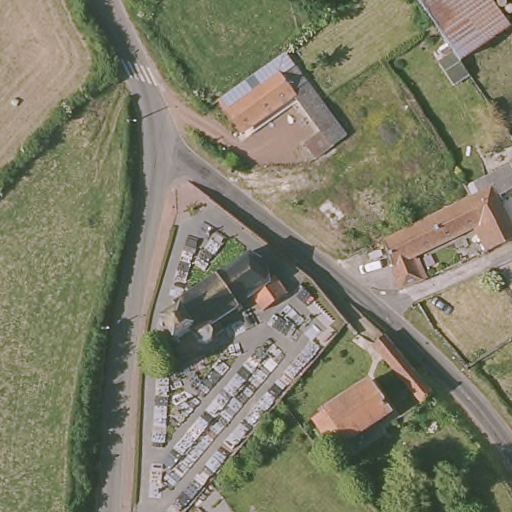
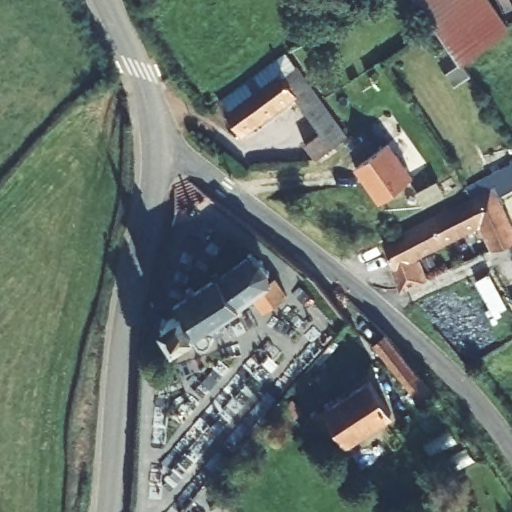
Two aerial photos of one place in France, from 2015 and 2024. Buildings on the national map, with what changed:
unchanged [(443,40),(416,0),(486,0),(509,33),(461,66),(443,40)]
unchanged [(345,134),(316,154),(306,140),(319,131),(288,90),(269,103),(238,132),(217,108),(283,51),(345,134)]
new [(390,142),(414,175),(378,203),(355,168),(390,142)]
unchanged [(494,183),(512,174),(512,188),(501,193),(494,183)]
unchanged [(472,206),(466,196),(491,184),(512,223),(512,249),(501,253),(477,212),(472,206)]
unchanged [(397,277),(385,252),(477,212),(501,253),(494,257),(482,239),(421,266),(430,286),(414,293),(406,296),(397,277)]
unchanged [(181,300),(176,295),(181,292),(186,297),(204,281),(200,276),(206,270),(210,276),(229,260),(227,257),(231,253),(234,257),(251,257),(276,291),(276,292),(254,311),(247,303),(242,297),(232,305),(235,309),(229,313),(226,310),(207,326),(210,329),(204,334),(200,331),(197,334),(198,344),(190,351),(185,351),(177,343),(168,351),(150,327),(181,300)]
unchanged [(417,391),(377,344),(388,334),(430,379),(417,391)]
unchanged [(345,434),(335,441),(322,424),(370,383),(398,416),(358,447),(345,434)]

